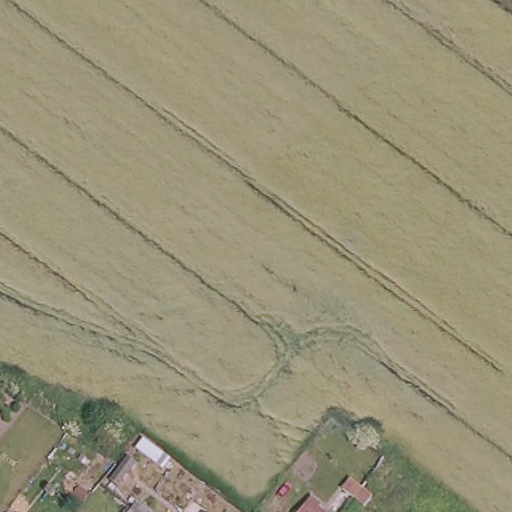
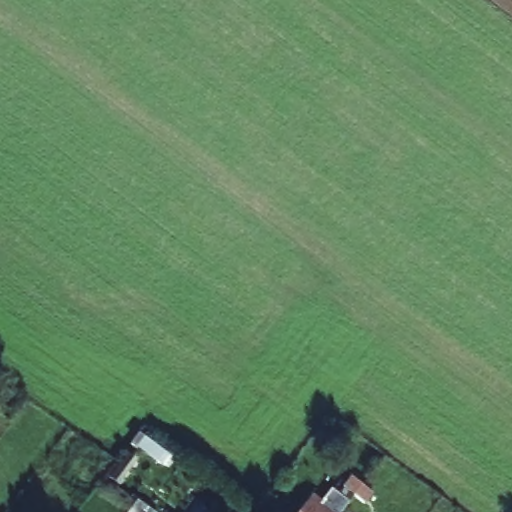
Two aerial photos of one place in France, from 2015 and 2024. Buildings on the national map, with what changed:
unchanged [(339,494),(346,484),(357,492),(368,500),(361,510),(349,502),(339,494)]
unchanged [(312,508),(311,510),(313,512),(295,512),(303,501),(312,508)]
unchanged [(145,512),(129,512),(134,504),(145,512)]

